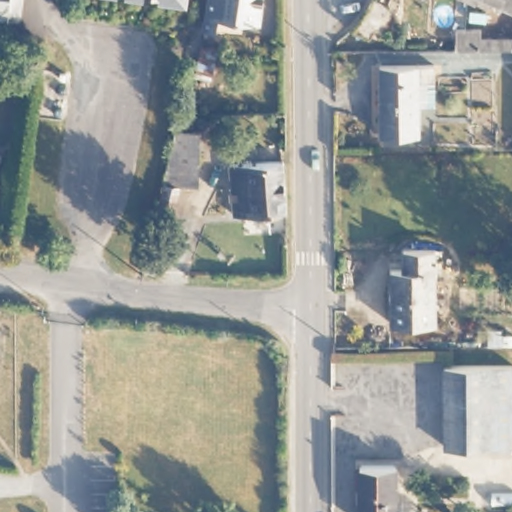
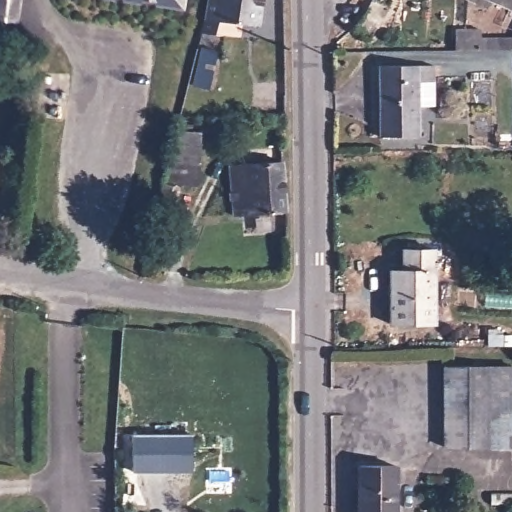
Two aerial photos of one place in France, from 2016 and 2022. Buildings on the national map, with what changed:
unchanged [(10,14),(0,13),(0,0),(12,0),(10,14)]
unchanged [(187,3),(167,0),(188,0),(187,3)]
unchanged [(260,26),(220,21),(215,34),(203,33),(209,5),(209,0),(262,0),(260,26)]
unchanged [(375,34),(360,25),(375,11),(378,0),(387,0),(394,4),(375,34)]
unchanged [(512,2),(508,0),(512,0),(512,2)]
unchanged [(458,19),(483,20),(483,30),(512,30),(512,42),(458,43),(458,19)]
unchanged [(432,91),(426,91),(426,101),(418,101),(416,132),(377,133),(377,62),(433,62),(432,91)]
unchanged [(179,128),(205,130),(201,183),(167,180),(179,128)]
unchanged [(235,212),(231,163),(286,161),(287,209),(235,212)]
unchanged [(439,321),(394,320),(394,268),(407,268),(407,247),(440,247),(439,321)]
unchanged [(444,364),(512,364),(512,444),(443,445),(444,364)]
new [(194,472),(135,473),(132,434),(194,435),(194,472)]
unchanged [(364,512),(364,461),(400,461),(400,512),(364,512)]

